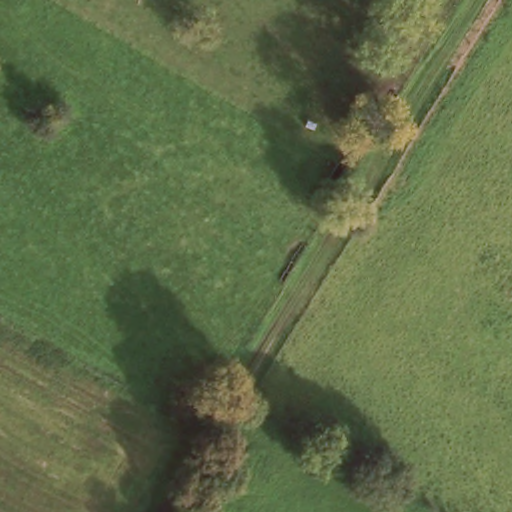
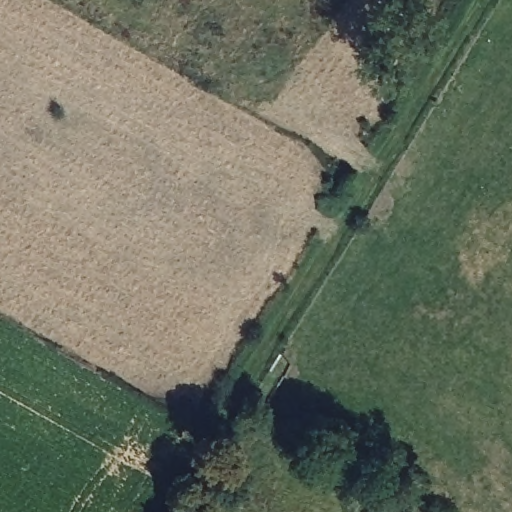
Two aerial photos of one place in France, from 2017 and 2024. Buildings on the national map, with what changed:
unchanged [(320,131),(338,133),(335,166),(316,164),(320,131)]

